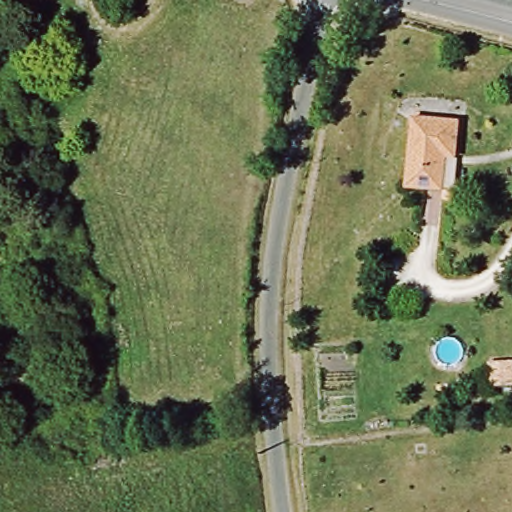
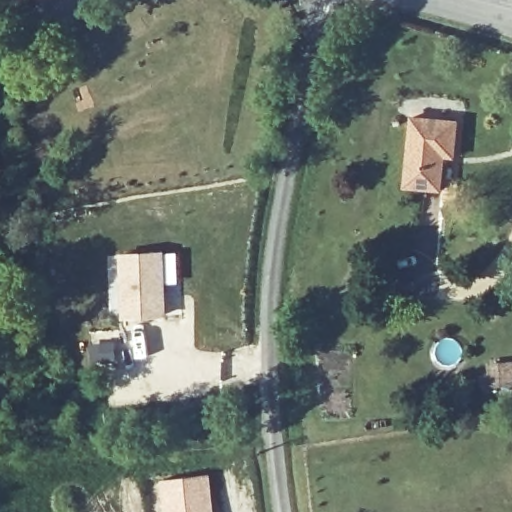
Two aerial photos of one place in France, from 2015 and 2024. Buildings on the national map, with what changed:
unchanged [(459,126),(455,166),(438,165),(433,197),(401,192),(409,121),(459,126)]
new [(119,253),(164,251),(166,316),(123,319),(119,253)]
unchanged [(505,354),(504,372),(482,373),(477,372),(478,352),(505,354)]
new [(217,512),(157,512),(153,480),(210,472),(217,512)]

